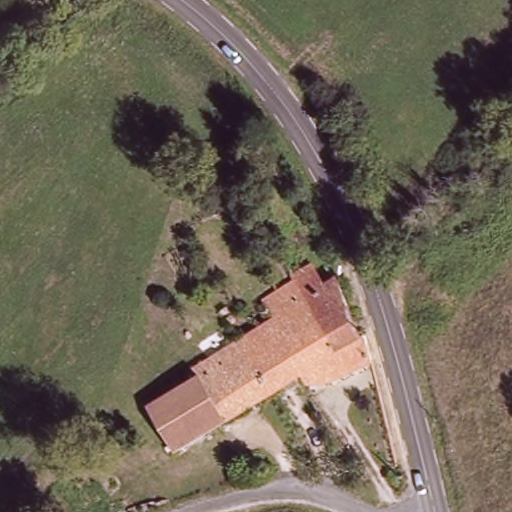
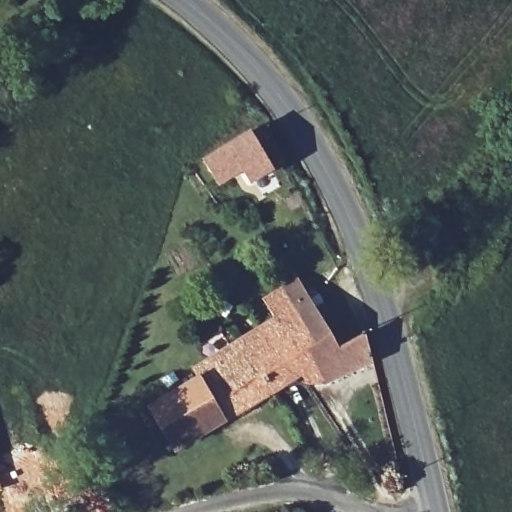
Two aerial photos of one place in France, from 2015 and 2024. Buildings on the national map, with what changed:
new [(250,129),(274,169),(250,184),(242,172),(218,187),(200,158),(250,129)]
unchanged [(319,261),(328,282),(333,281),(344,312),(354,337),(327,350),(292,283),(284,286),(280,277),(284,275),(319,261)]
unchanged [(358,337),(368,363),(319,387),(304,385),(299,376),(269,395),(234,343),(269,321),(258,298),(284,286),(292,283),(327,350),(354,337),(358,337)]
unchanged [(172,451),(144,408),(191,376),(189,372),(234,343),(269,395),(172,451)]
new [(0,491),(0,483),(2,491),(0,491)]

